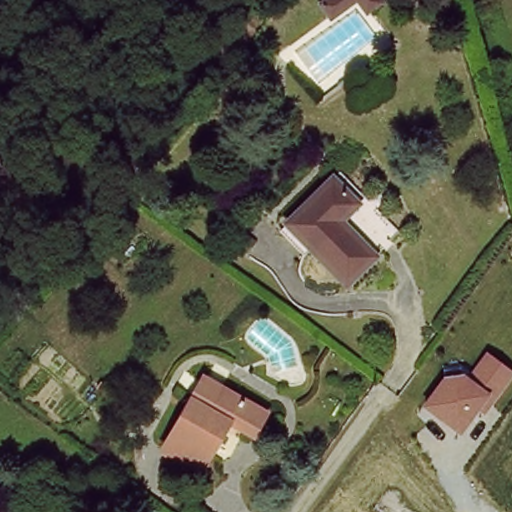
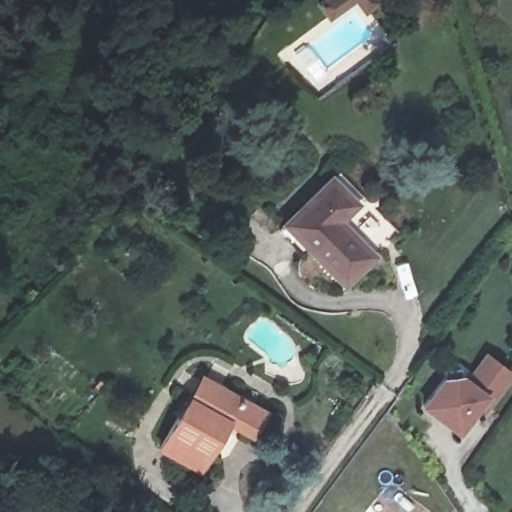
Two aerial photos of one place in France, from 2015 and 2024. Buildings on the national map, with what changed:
unchanged [(323,0),(345,0),(331,11),(323,0)]
unchanged [(360,0),(375,0),(366,7),(360,0)]
unchanged [(329,174),(359,201),(341,221),(379,258),(349,288),(283,222),(329,174)]
unchanged [(479,411),(460,436),(421,407),(444,375),(465,372),(469,377),(485,352),(512,371),(512,379),(485,417),(479,411)]
unchanged [(249,441),(225,429),(198,472),(159,450),(191,399),(204,375),(225,389),(266,416),(249,441)]

